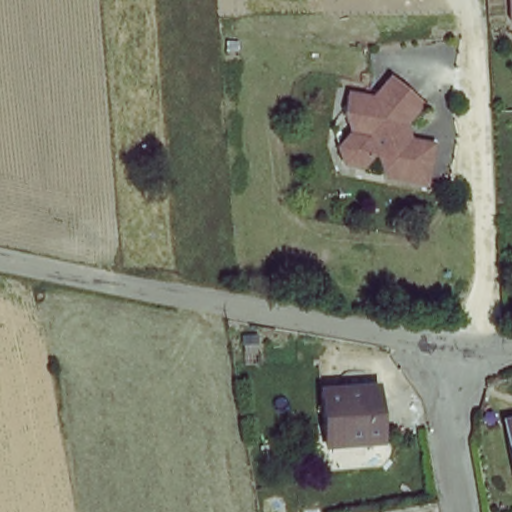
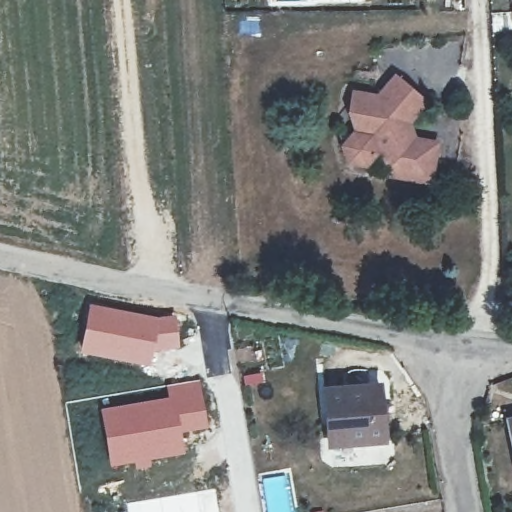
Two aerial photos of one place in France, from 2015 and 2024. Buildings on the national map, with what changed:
unchanged [(512,40),(506,31),(507,0),(512,0),(512,40)]
unchanged [(348,167),(339,147),(333,132),(347,120),(352,95),(376,100),(392,81),(423,105),(402,129),(405,140),(437,146),(430,186),(385,176),(359,171),(348,167)]
new [(88,303),(155,316),(177,315),(180,348),(153,351),(150,366),(79,352),(88,303)]
new [(167,396),(165,385),(200,379),(208,428),(182,433),(185,455),(151,461),(152,468),(135,471),(133,462),(109,468),(99,407),(167,396)]
unchanged [(378,388),(384,443),(330,449),(325,393),(378,388)]
unchanged [(512,417),(512,454),(504,418),(512,417)]
new [(220,512),(128,512),(126,502),(215,487),(220,512)]

